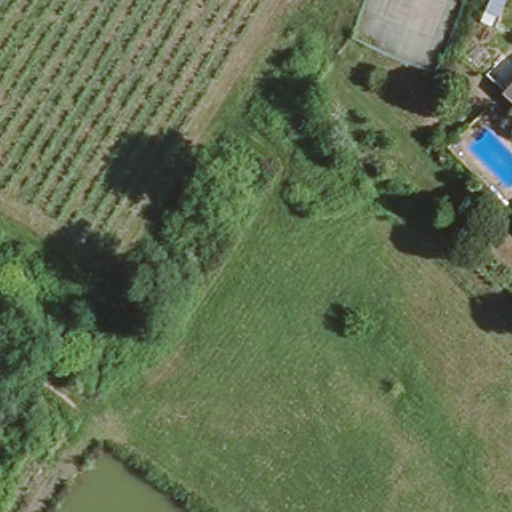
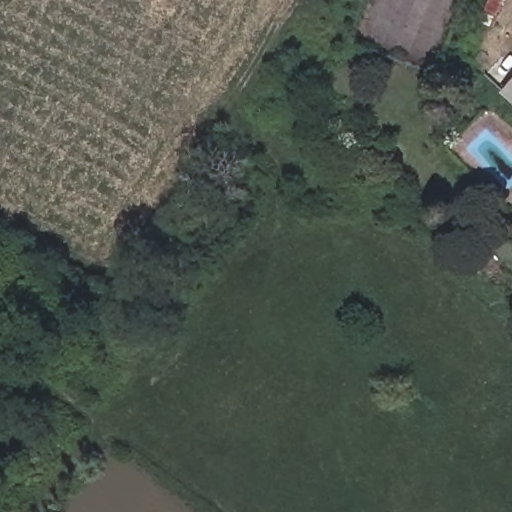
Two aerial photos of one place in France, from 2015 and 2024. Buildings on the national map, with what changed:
unchanged [(512,75),(512,115),(492,101),(512,75)]

